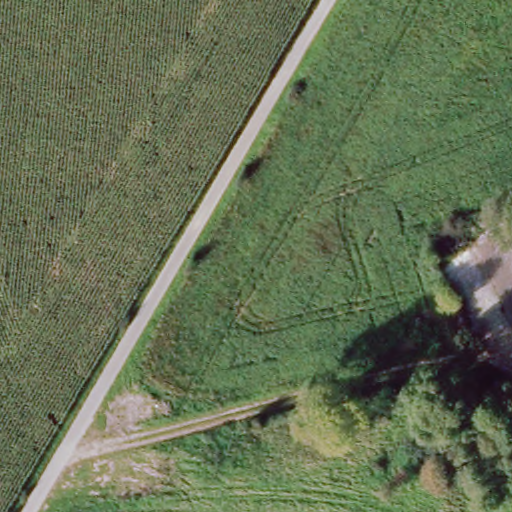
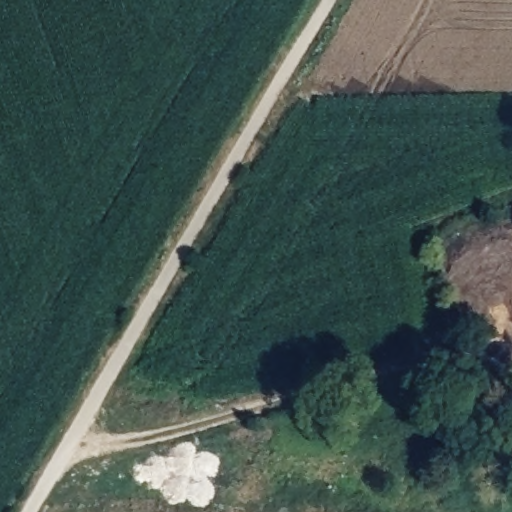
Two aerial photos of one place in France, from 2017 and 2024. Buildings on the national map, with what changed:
unchanged [(512,390),(512,400),(509,391),(512,390)]

